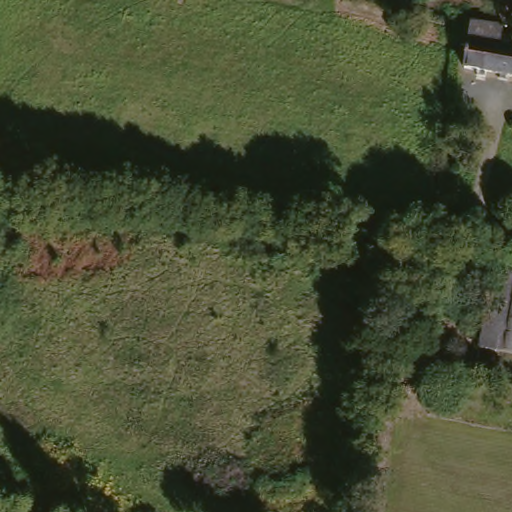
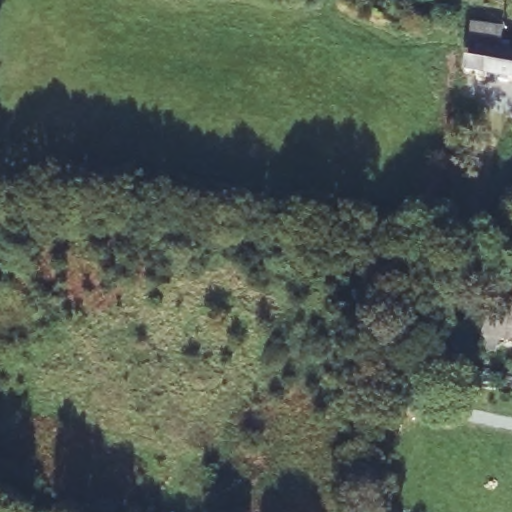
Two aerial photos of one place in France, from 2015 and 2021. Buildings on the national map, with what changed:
unchanged [(464,39),(467,28),(501,35),(499,46),(512,49),(512,81),(458,70),(464,39)]
unchanged [(512,369),(474,360),(494,270),(512,274),(512,369)]
unchanged [(379,314),(374,358),(341,354),(346,310),(379,314)]

